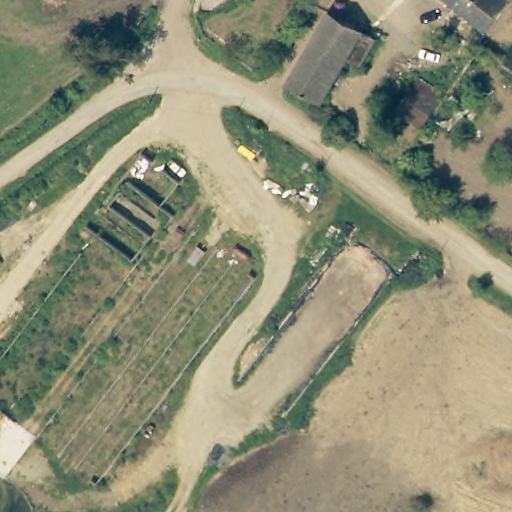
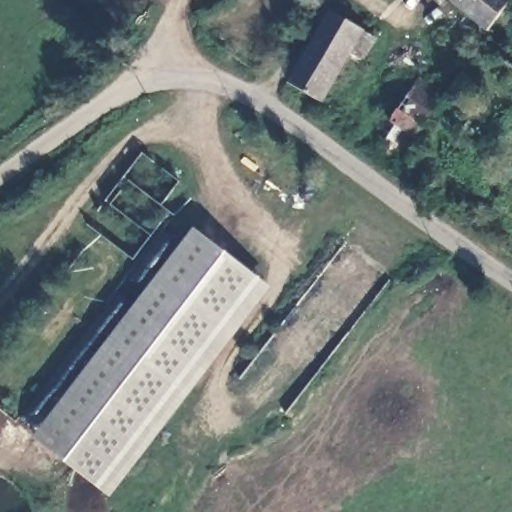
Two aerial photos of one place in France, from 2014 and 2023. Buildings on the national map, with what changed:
unchanged [(485,29),(448,0),(509,0),(485,29)]
unchanged [(362,30),(375,37),(361,64),(347,58),(320,102),(288,83),(330,11),(362,30)]
unchanged [(503,58),(512,47),(512,64),(503,58)]
unchanged [(390,122),(418,77),(443,94),(398,163),(380,149),(395,125),(390,122)]
new [(111,497),(32,438),(194,228),(272,287),(111,497)]

